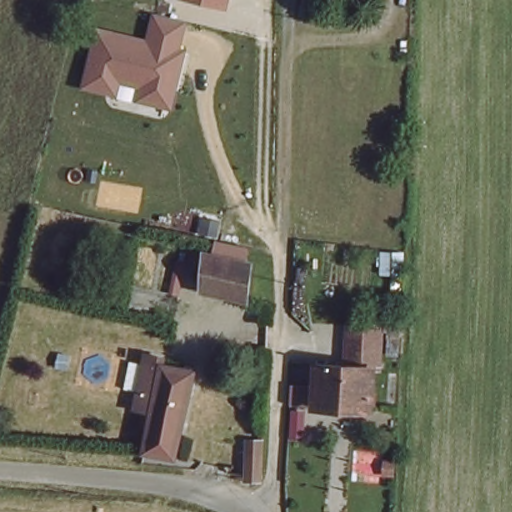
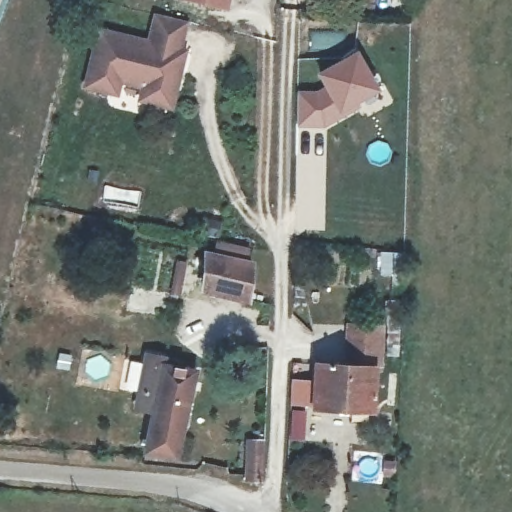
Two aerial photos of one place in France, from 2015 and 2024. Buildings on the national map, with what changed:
unchanged [(228,9),(187,0),(230,0),(228,9)]
unchanged [(185,48),(190,48),(174,110),(82,89),(98,24),(151,37),(157,13),(189,22),(185,48)]
new [(312,86),(323,79),(313,61),(353,38),(377,77),(352,92),(357,101),(322,122),(292,122),(292,87),(312,86)]
unchanged [(203,295),(207,257),(258,262),(257,299),(203,295)]
unchanged [(317,362),(347,365),(350,325),(382,328),(378,369),(373,368),(370,414),(312,410),(317,362)]
unchanged [(154,408),(135,406),(141,358),(158,358),(165,359),(172,359),(197,361),(190,453),(151,450),(154,410),(154,408)]
unchanged [(237,476),(242,433),(261,435),(257,479),(237,476)]

